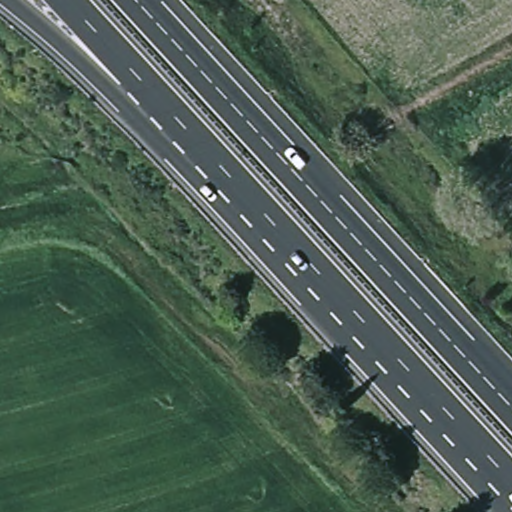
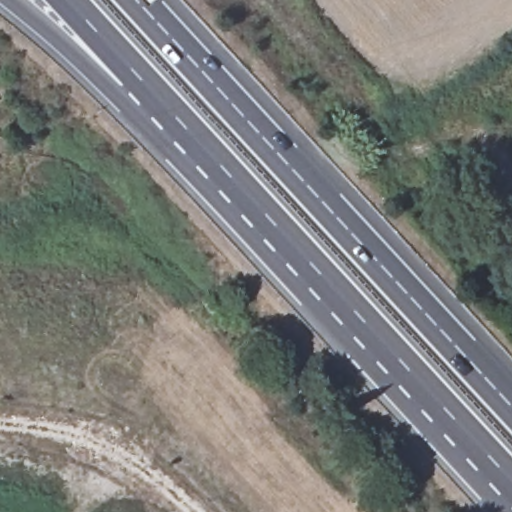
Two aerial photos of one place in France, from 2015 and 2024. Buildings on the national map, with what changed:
[]

